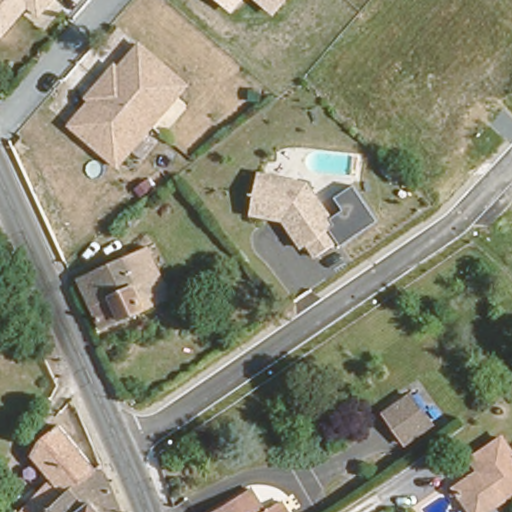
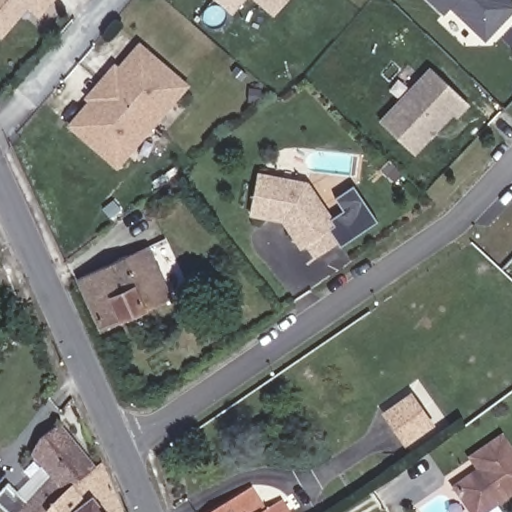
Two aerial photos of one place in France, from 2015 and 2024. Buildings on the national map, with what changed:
unchanged [(29,6),(4,39),(0,37),(0,0),(54,0),(41,14),(29,6)]
unchanged [(232,12),(217,0),(242,0),(232,12)]
unchanged [(274,16),(255,0),(288,0),(274,16)]
new [(512,0),(512,13),(486,42),(449,8),(443,14),(428,0),(512,0)]
unchanged [(94,100),(89,96),(118,64),(122,68),(144,42),(192,84),(119,167),(71,125),(94,100)]
new [(469,105),(458,119),(453,115),(415,154),(379,120),(429,67),(469,105)]
unchanged [(254,178),(309,184),(333,217),(339,224),(334,227),(343,240),(338,244),(320,256),(311,244),(306,248),(283,217),(277,216),(272,220),(250,217),(254,178)]
unchanged [(344,210),(335,198),(354,186),(377,221),(339,247),(338,244),(343,240),(334,227),(339,224),(333,217),(344,210)]
unchanged [(105,324),(80,275),(152,239),(156,248),(150,251),(172,291),(105,324)]
unchanged [(409,442),(387,411),(413,391),(437,423),(409,442)]
unchanged [(31,512),(61,482),(36,443),(62,425),(96,472),(54,512),(31,512)]
unchanged [(481,465),(470,449),(502,428),(512,444),(512,489),(475,512),(474,512),(454,482),(481,465)]
unchanged [(103,465),(121,512),(54,512),(96,472),(103,465)]
unchanged [(266,503),(282,492),(294,512),(207,512),(252,483),(266,503)]
unchanged [(31,512),(14,512),(23,503),(31,512)]

